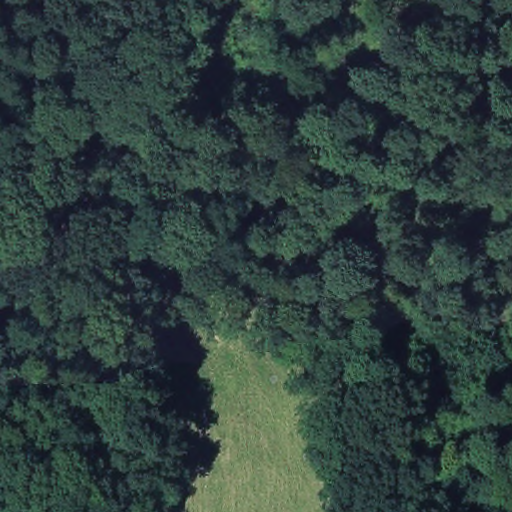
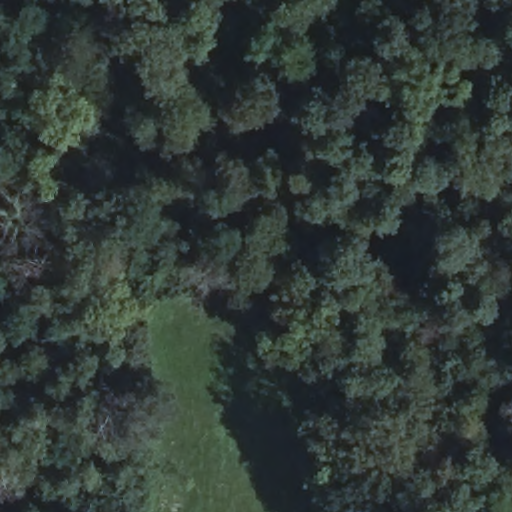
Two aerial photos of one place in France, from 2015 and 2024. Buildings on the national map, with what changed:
unchanged [(131,277),(145,254),(159,262),(164,254),(177,262),(172,271),(159,294),(131,277)]

